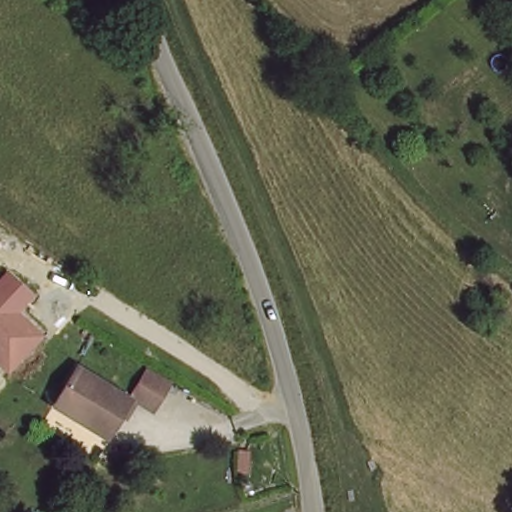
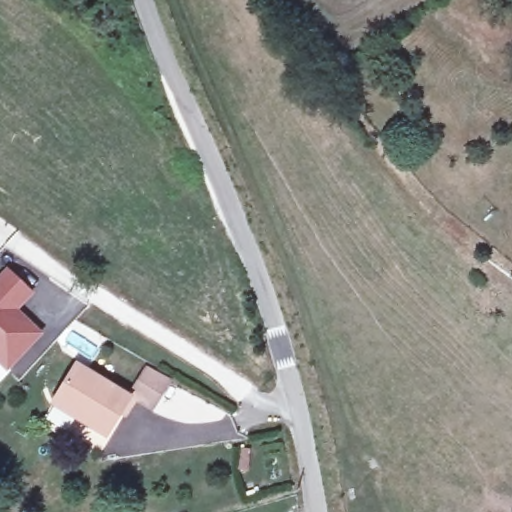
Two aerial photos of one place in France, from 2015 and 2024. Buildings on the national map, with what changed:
unchanged [(0,367),(0,277),(6,271),(33,296),(18,312),(42,336),(6,373),(0,367)]
unchanged [(128,403),(104,442),(74,425),(78,419),(53,405),(73,371),(128,403)]
unchanged [(145,376),(166,388),(151,414),(129,401),(145,376)]

